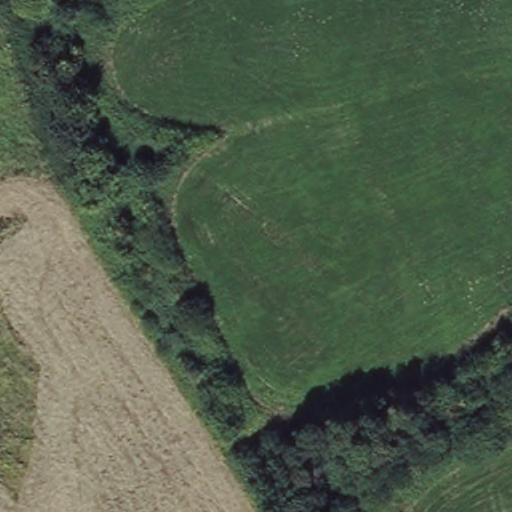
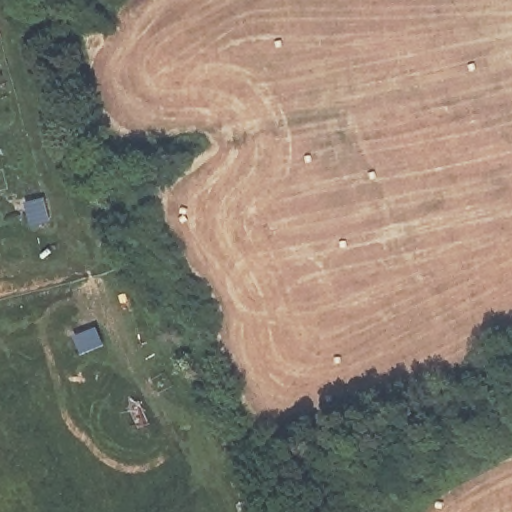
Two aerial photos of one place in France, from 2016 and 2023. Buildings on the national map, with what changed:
[]

